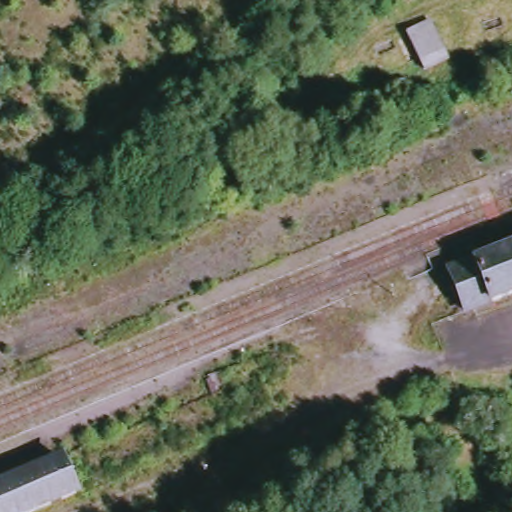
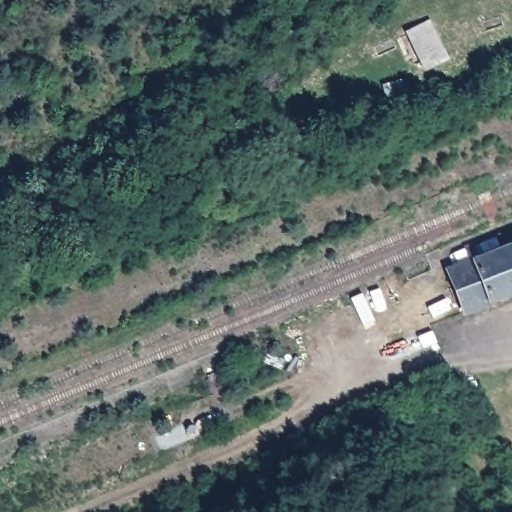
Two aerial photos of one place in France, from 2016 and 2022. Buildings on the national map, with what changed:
unchanged [(446,48),(419,61),(405,30),(430,16),(446,48)]
unchanged [(469,313),(450,270),(512,247),(512,296),(469,313)]
demolished [(0,512),(0,480),(62,454),(80,494),(36,512),(0,512)]

